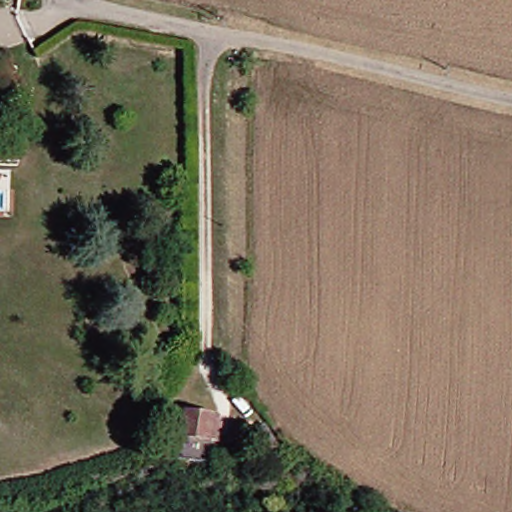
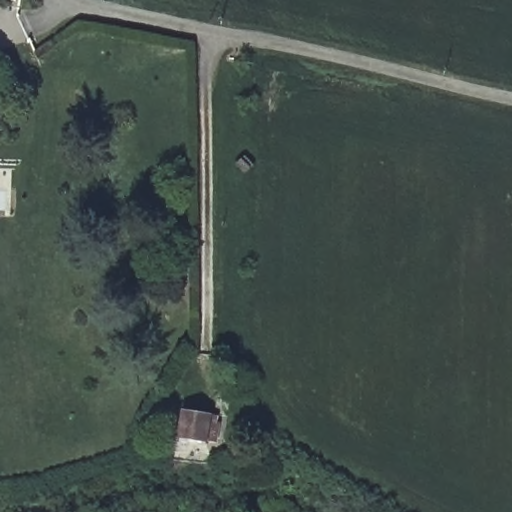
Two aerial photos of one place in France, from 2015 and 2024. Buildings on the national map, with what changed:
unchanged [(218,418),(217,423),(220,423),(217,442),(180,437),(183,413),(218,418)]

